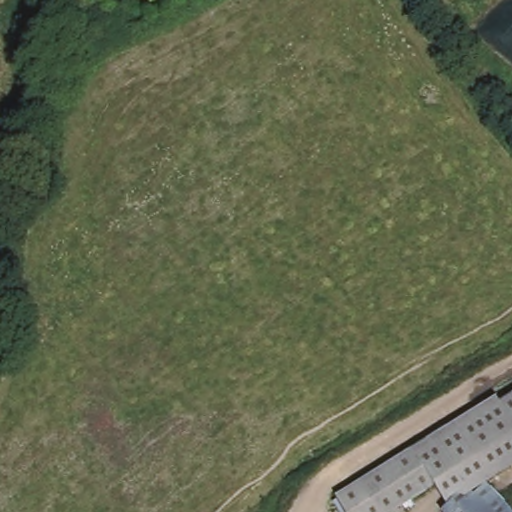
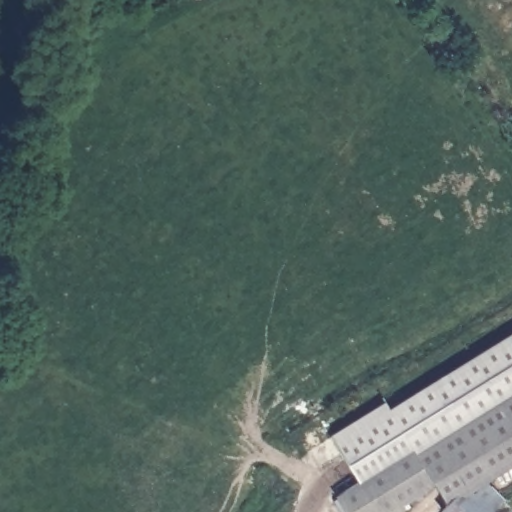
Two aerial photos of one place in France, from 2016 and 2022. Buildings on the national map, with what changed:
new [(499,403),(493,395),(356,481),(331,436),(385,402),(388,410),(512,333),(512,394),(499,403)]
unchanged [(493,395),(499,403),(512,394),(512,467),(480,486),(460,504),(452,496),(442,505),(435,494),(401,512),(342,512),(333,495),(493,395)]
unchanged [(435,511),(442,505),(452,496),(460,504),(480,486),(505,512),(436,512),(435,511)]

